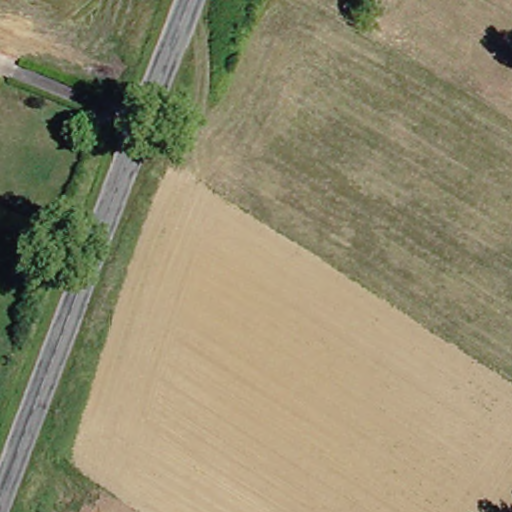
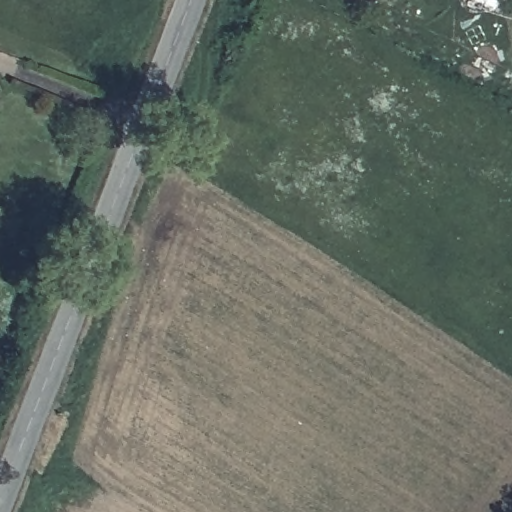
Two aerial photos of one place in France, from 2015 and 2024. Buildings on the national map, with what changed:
[]

